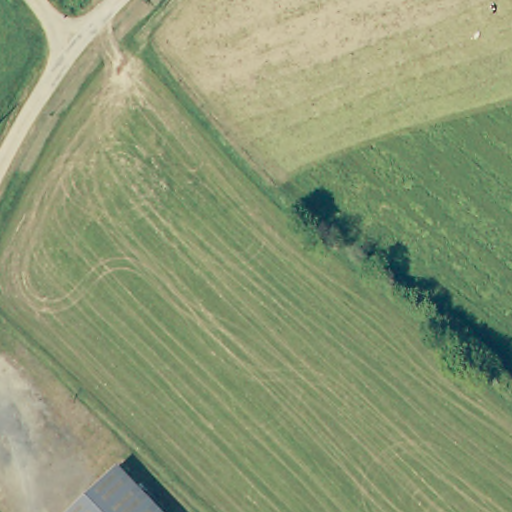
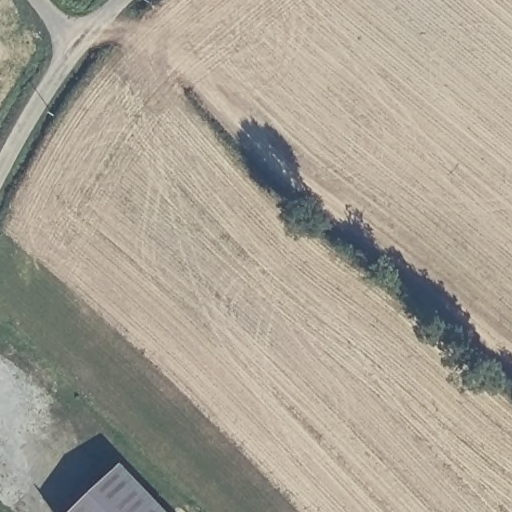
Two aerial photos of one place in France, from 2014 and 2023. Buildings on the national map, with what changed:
unchanged [(164,512),(76,512),(121,468),(164,512)]

